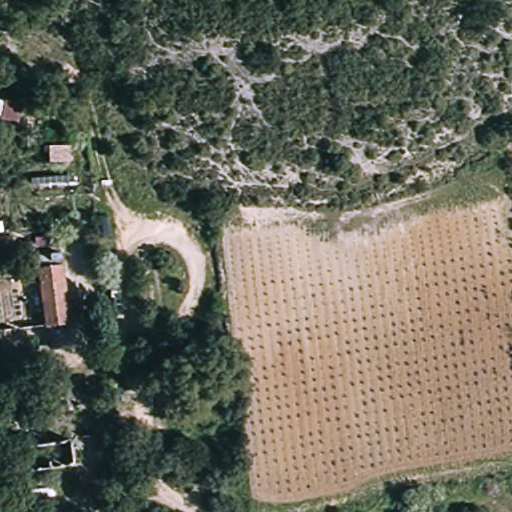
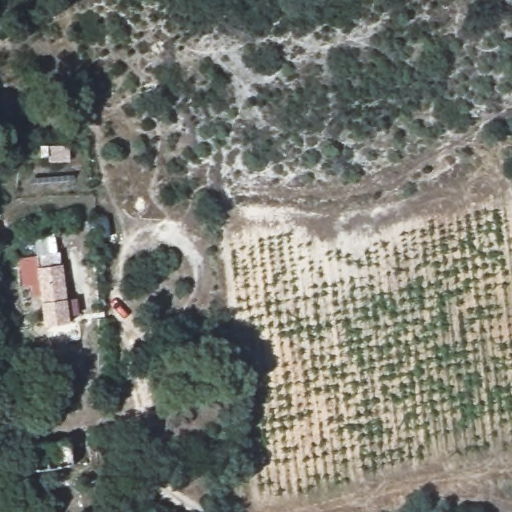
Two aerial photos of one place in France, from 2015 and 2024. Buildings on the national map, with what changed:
unchanged [(12,72),(15,88),(0,92),(0,75),(12,72)]
unchanged [(61,260),(67,317),(69,330),(46,333),(40,262),(61,260)]

